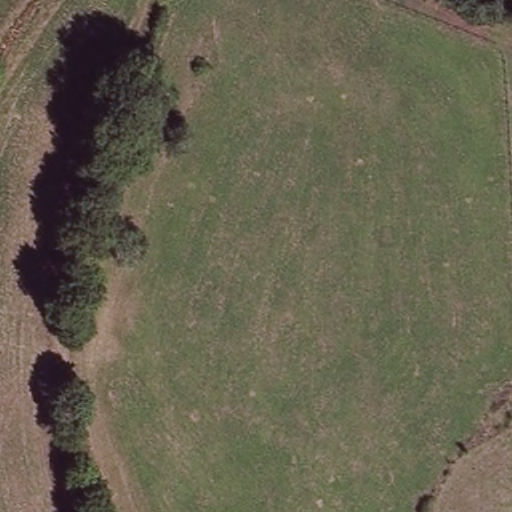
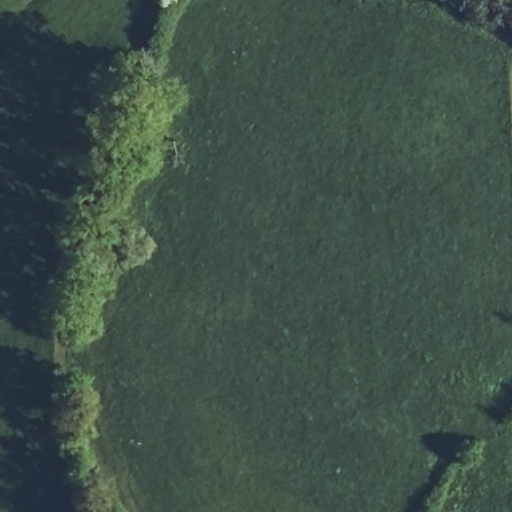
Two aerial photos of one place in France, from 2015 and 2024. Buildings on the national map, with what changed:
[]

